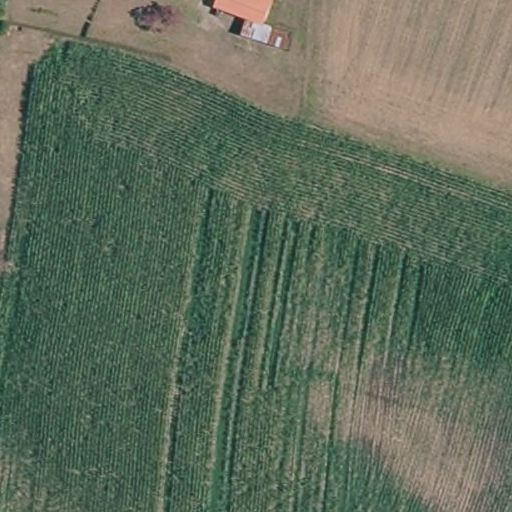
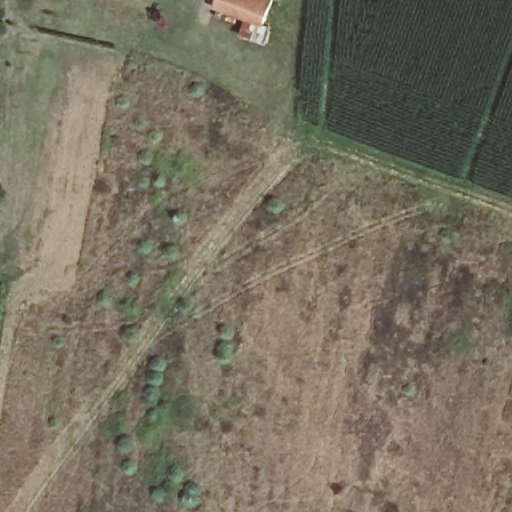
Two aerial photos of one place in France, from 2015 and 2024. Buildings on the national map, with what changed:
unchanged [(222,0),(278,0),(275,8),(269,25),(219,6),(222,0)]

